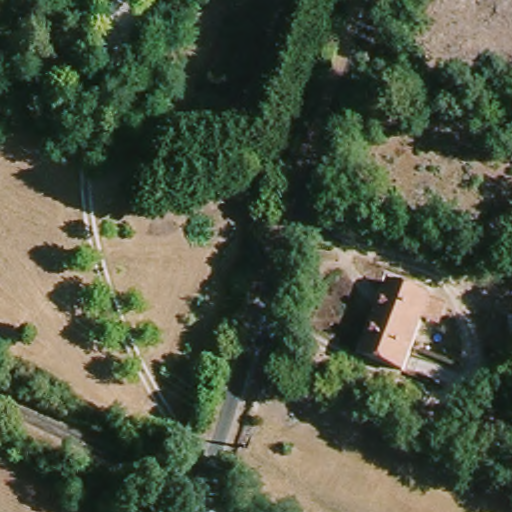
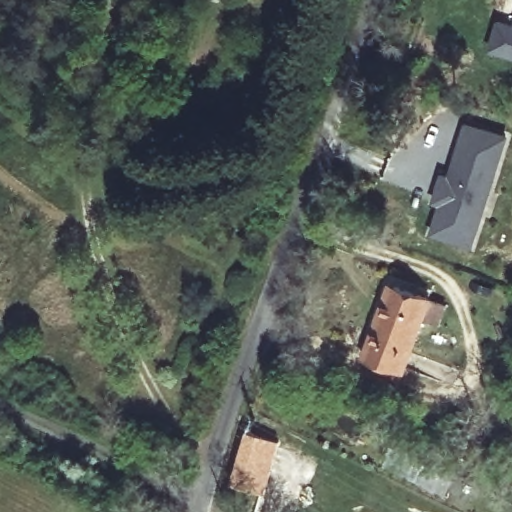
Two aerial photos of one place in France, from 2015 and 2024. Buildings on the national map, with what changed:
unchanged [(487,51),(497,19),(512,24),(512,59),(487,51)]
unchanged [(258,91),(270,55),(285,60),(274,96),(258,91)]
new [(509,136),(472,250),(430,236),(439,206),(431,204),(440,173),(448,175),(465,122),(509,136)]
unchanged [(431,304),(404,374),(365,358),(393,288),(431,304)]
new [(263,494),(230,483),(247,430),(280,441),(263,494)]

